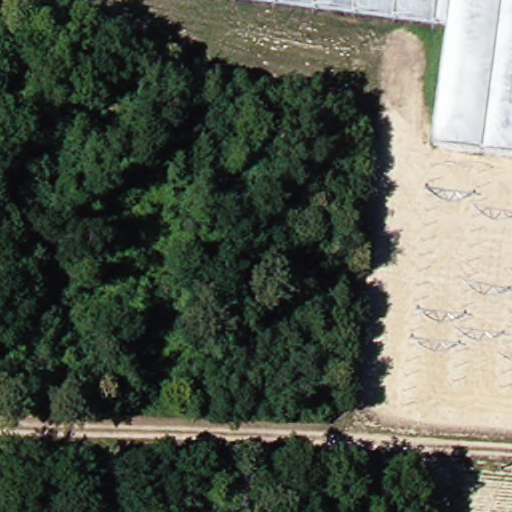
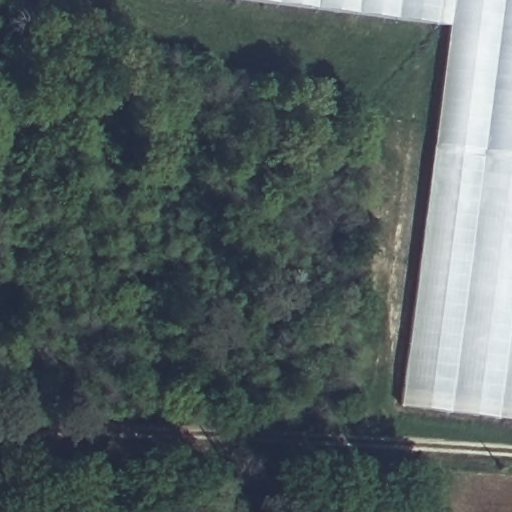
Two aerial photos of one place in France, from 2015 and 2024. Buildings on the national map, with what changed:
unchanged [(457,29),(240,0),(461,0),(457,29)]
unchanged [(461,0),(512,0),(512,150),(445,143),(443,143),(457,29),(461,0)]
new [(512,419),(402,405),(435,152),(512,161),(512,419)]

